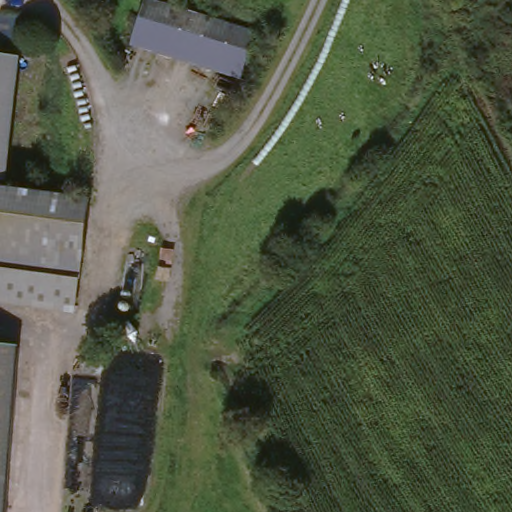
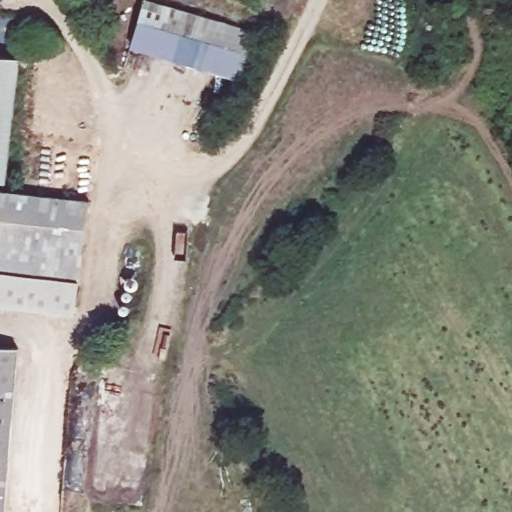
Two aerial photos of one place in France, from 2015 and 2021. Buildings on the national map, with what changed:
unchanged [(249,36),(236,87),(126,55),(140,5),(249,36)]
unchanged [(45,38),(43,50),(0,46),(0,20),(31,22),(45,38)]
unchanged [(0,63),(15,64),(1,187),(0,187),(0,63)]
unchanged [(0,201),(84,210),(69,309),(0,300),(0,201)]
unchanged [(0,506),(0,358),(19,360),(0,506)]

